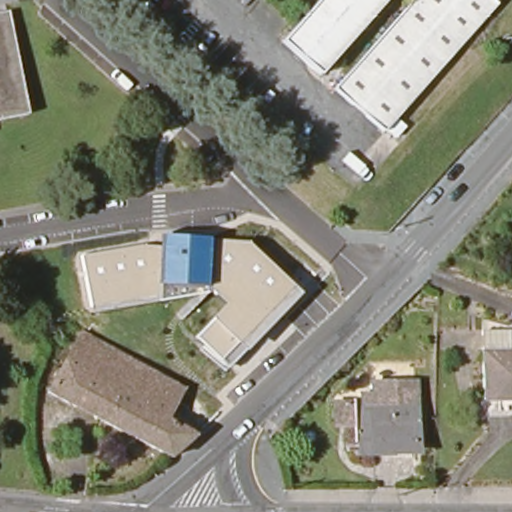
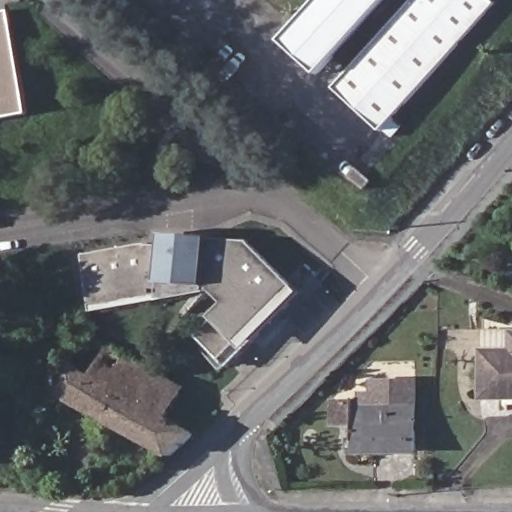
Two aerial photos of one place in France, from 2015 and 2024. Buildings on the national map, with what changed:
unchanged [(286,46),(327,0),(395,0),(322,80),(286,46)]
unchanged [(337,88),(417,0),(495,0),(501,4),(385,131),(337,88)]
unchanged [(15,15),(34,118),(0,124),(0,18),(15,15)]
unchanged [(196,336),(211,318),(225,304),(212,291),(159,301),(93,312),(83,255),(145,244),(159,245),(160,235),(209,239),(249,242),(300,293),(245,351),(227,367),(196,336)]
unchanged [(482,402),(483,322),(512,330),(512,409),(498,409),(498,403),(482,402)]
unchanged [(82,333),(125,358),(110,388),(114,391),(100,420),(50,393),(82,333)]
unchanged [(169,420),(197,439),(172,461),(100,420),(114,391),(110,388),(125,358),(142,367),(184,392),(169,420)]
unchanged [(420,454),(380,454),(381,447),(360,446),(360,427),(339,426),(340,406),(366,406),(367,398),(377,398),(377,385),(421,385),(420,454)]
unchanged [(169,420),(184,392),(197,399),(194,406),(214,423),(197,439),(169,420)]

